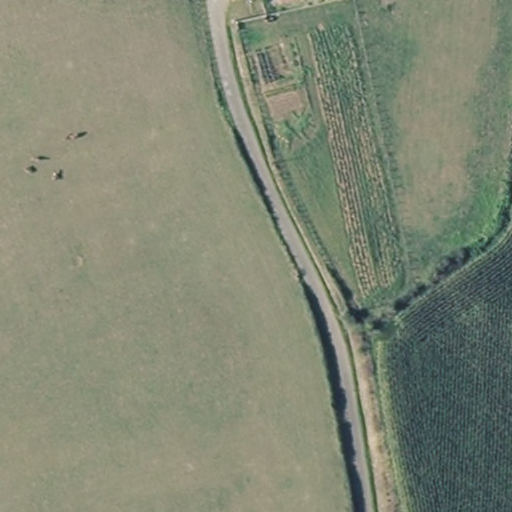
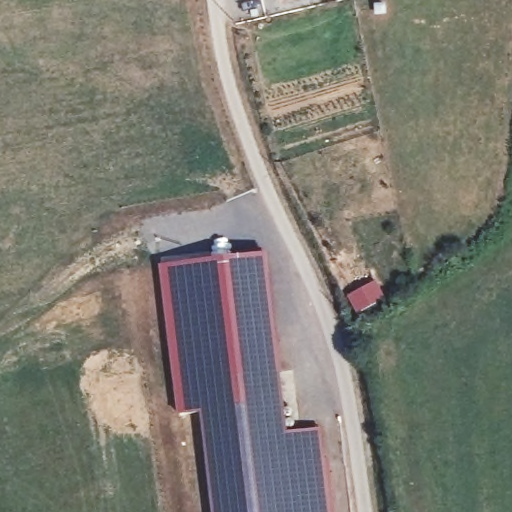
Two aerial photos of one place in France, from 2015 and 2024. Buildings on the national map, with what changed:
new [(197,382),(201,409),(178,415),(160,266),(267,252),(281,372),(197,382)]
new [(375,278),(385,297),(356,313),(346,295),(375,278)]
new [(325,456),(331,512),(213,512),(197,382),(281,372),(291,459),(325,456)]

